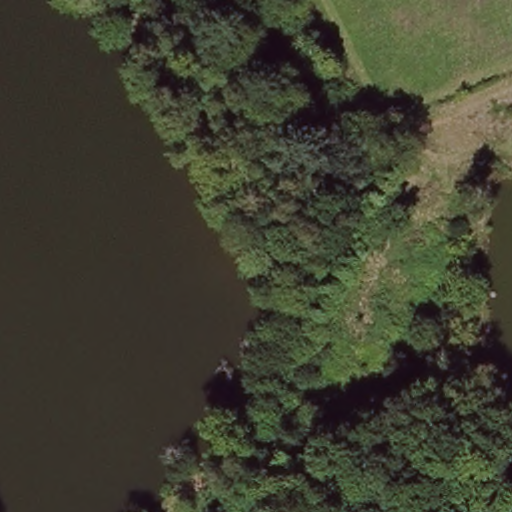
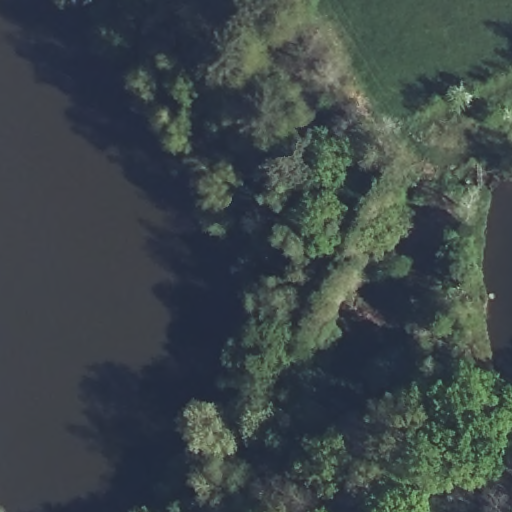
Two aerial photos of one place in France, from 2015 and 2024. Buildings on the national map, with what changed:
[]

